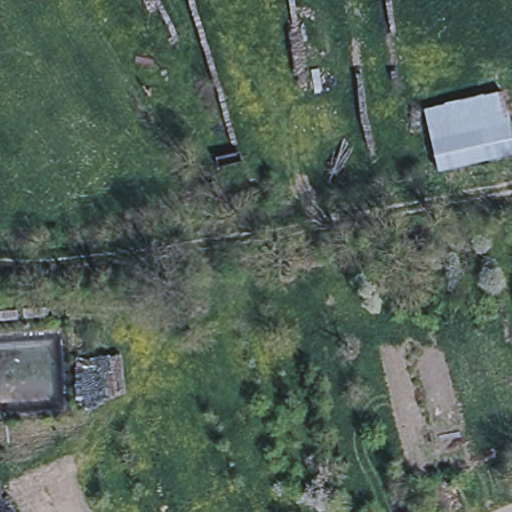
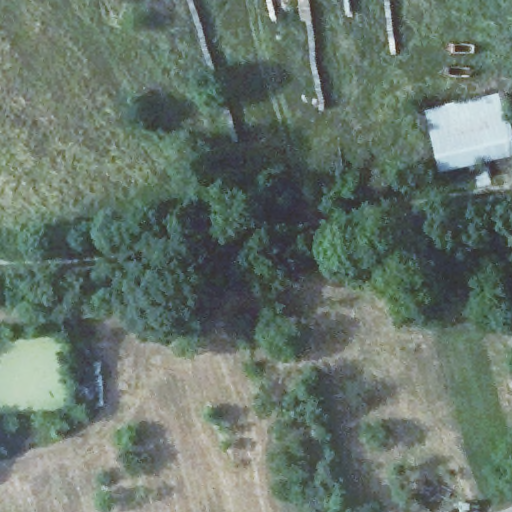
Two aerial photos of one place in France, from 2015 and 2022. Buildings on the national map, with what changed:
unchanged [(506,93),(512,120),(512,156),(440,173),(427,112),(480,99),(506,93)]

